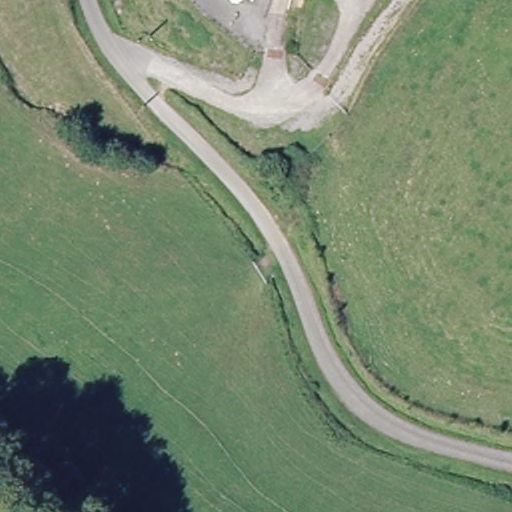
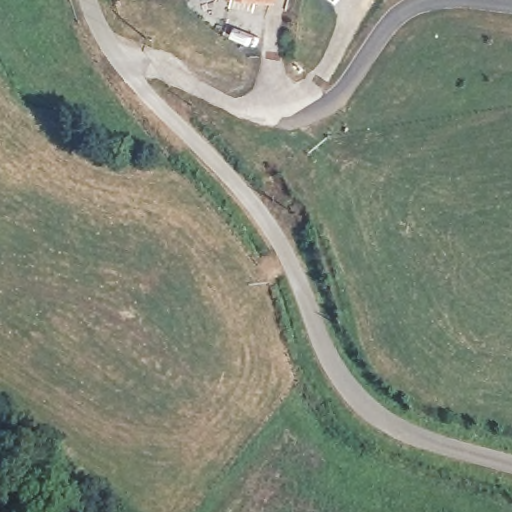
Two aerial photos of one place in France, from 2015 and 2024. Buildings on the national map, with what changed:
unchanged [(269,1),(265,0),(269,0),(269,1)]

